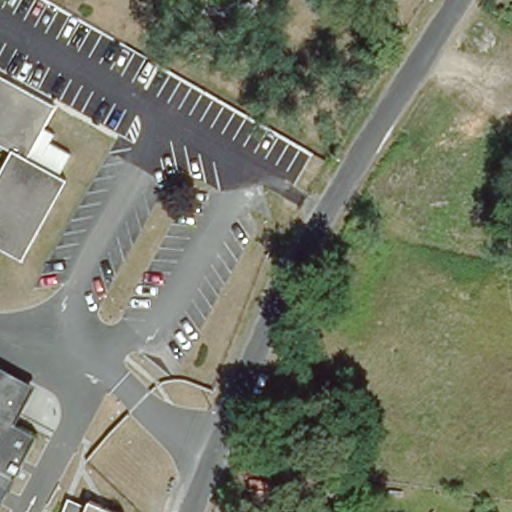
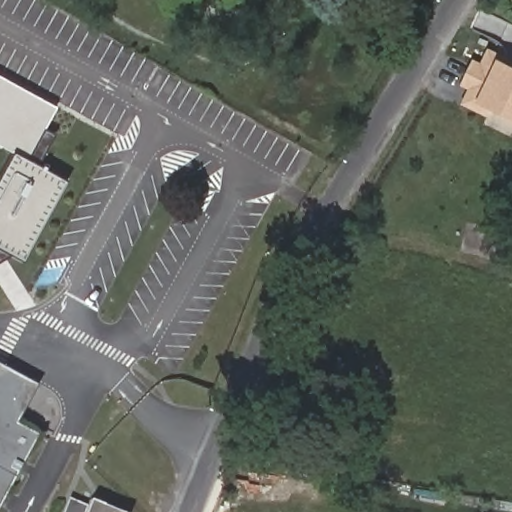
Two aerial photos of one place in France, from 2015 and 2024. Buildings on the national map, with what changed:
new [(503,60),(512,64),(512,118),(495,110),(490,118),(463,105),(472,90),(462,85),(475,57),(484,62),(490,49),(505,55),(503,60)]
unchanged [(43,128),(56,135),(51,144),(70,155),(58,177),(65,181),(21,261),(0,250),(0,172),(12,151),(0,144),(0,76),(55,105),(43,128)]
unchanged [(34,387),(16,425),(36,436),(0,506),(0,369),(34,387)]
unchanged [(79,495),(116,510),(116,512),(73,512),(78,499),(79,495)]

